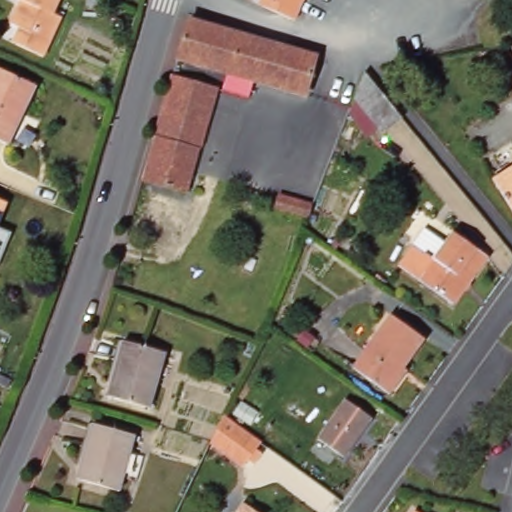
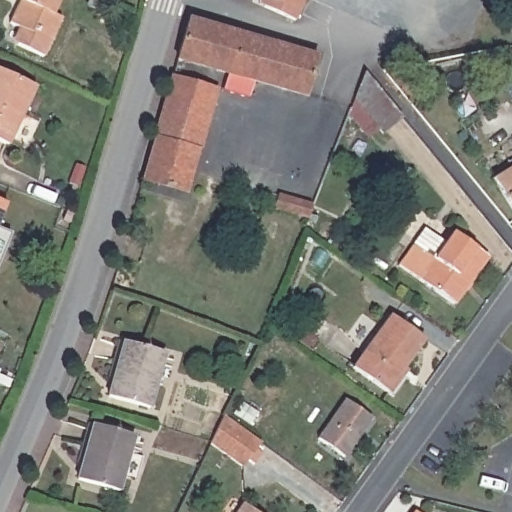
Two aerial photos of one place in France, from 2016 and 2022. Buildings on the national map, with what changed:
unchanged [(54,8),(64,14),(45,53),(15,39),(21,25),(9,19),(18,0),(58,0),(54,8)]
unchanged [(266,7),(268,0),(306,0),(299,19),(266,7)]
unchanged [(315,56),(305,93),(182,54),(192,16),(315,56)]
unchanged [(0,138),(0,65),(34,82),(6,141),(0,138)]
unchanged [(178,75),(202,81),(188,131),(207,136),(193,185),(192,191),(148,178),(178,75)]
unchanged [(357,76),(369,90),(391,117),(372,133),(346,100),(356,77),(357,76)]
unchanged [(188,131),(202,81),(222,87),(207,136),(188,131)]
unchanged [(494,177),(512,164),(512,202),(494,177)]
unchanged [(282,193),(303,198),(300,212),(279,207),(282,193)]
unchanged [(1,229),(0,232),(0,198),(11,202),(1,229)]
unchanged [(491,252),(454,300),(401,261),(417,239),(420,234),(443,250),(459,229),(491,252)]
unchanged [(404,368),(408,371),(394,390),(356,363),(393,309),(428,333),(404,368)]
unchanged [(113,394),(126,340),(165,349),(154,403),(113,394)]
unchanged [(346,451),(319,432),(347,393),(373,412),(346,451)]
unchanged [(242,466),(210,444),(213,438),(224,416),(261,442),(242,466)]
unchanged [(119,491),(79,479),(94,424),(134,436),(119,491)]
unchanged [(255,512),(238,512),(244,504),(255,512)]
unchanged [(420,512),(411,512),(414,508),(420,512)]

